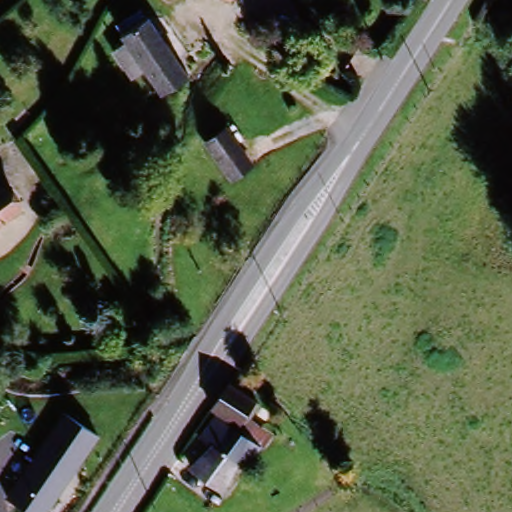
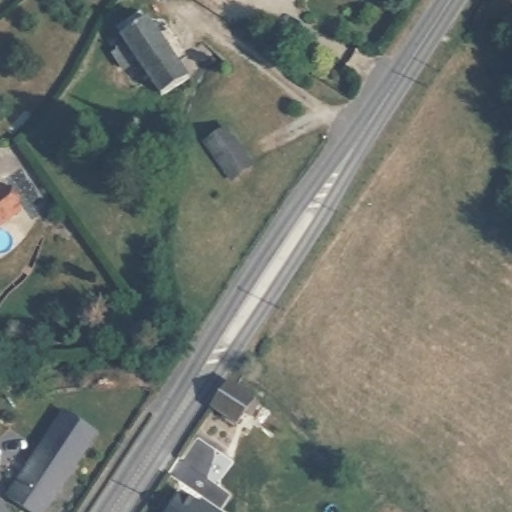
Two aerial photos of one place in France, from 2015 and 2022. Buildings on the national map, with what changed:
unchanged [(226,0),(231,0),(228,2),(226,0)]
unchanged [(119,34),(145,16),(185,73),(160,91),(145,72),(132,81),(111,51),(125,42),(119,34)]
unchanged [(228,129),(253,166),(233,179),(208,143),(228,129)]
unchanged [(0,192),(8,186),(23,209),(0,225),(0,192)]
unchanged [(237,419),(210,403),(226,381),(251,398),(237,419)]
unchanged [(101,436),(48,512),(24,512),(4,497),(62,410),(101,436)]
unchanged [(245,432),(251,422),(266,431),(245,462),(236,456),(221,484),(191,466),(210,441),(197,433),(212,411),(245,432)]
new [(208,510),(213,508),(220,512),(168,512),(181,492),(208,510)]
new [(208,510),(200,504),(202,500),(213,508),(208,510)]

